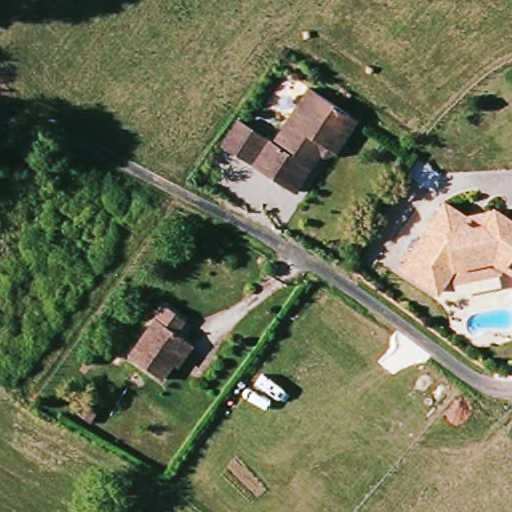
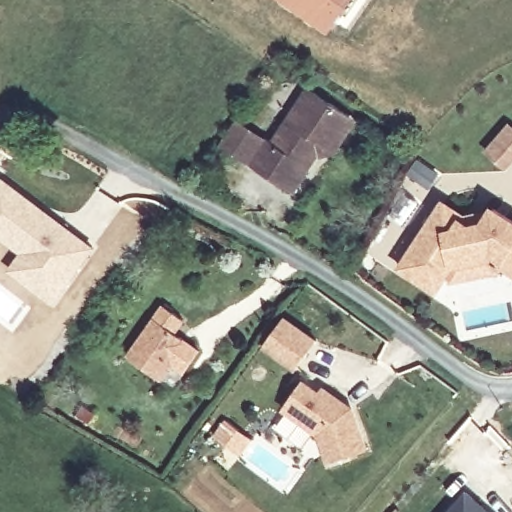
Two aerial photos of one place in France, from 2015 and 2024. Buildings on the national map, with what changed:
new [(276,0),(351,0),(327,34),(276,0)]
unchanged [(235,118),(260,132),(272,138),(305,80),(349,107),(355,111),(335,148),(315,149),(292,187),(244,158),(218,144),(235,118)]
new [(55,306),(7,269),(18,253),(0,240),(0,176),(96,248),(55,306)]
unchanged [(512,201),(512,270),(493,283),(443,287),(404,267),(451,188),(472,201),(470,206),(477,211),(492,207),(500,194),(512,201)]
unchanged [(170,352),(177,356),(161,379),(127,353),(161,302),(180,316),(171,330),(181,337),(170,352)]
new [(317,339),(295,370),(263,348),(284,315),(317,339)]
new [(321,390),(323,385),(354,408),(370,452),(327,464),(317,435),(283,410),(304,379),(321,390)]
new [(493,512),(448,512),(467,490),(493,512)]

